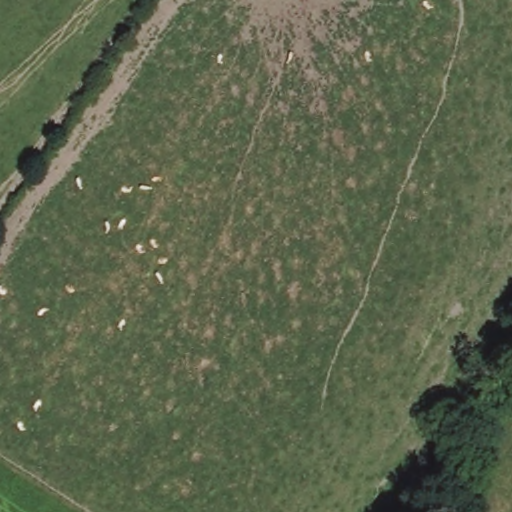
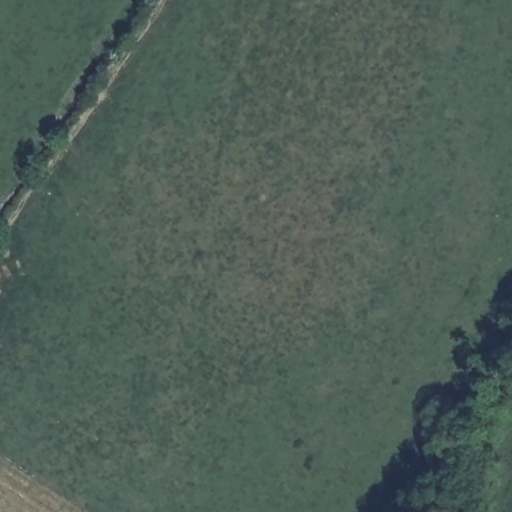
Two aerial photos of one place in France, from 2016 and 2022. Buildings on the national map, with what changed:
[]

